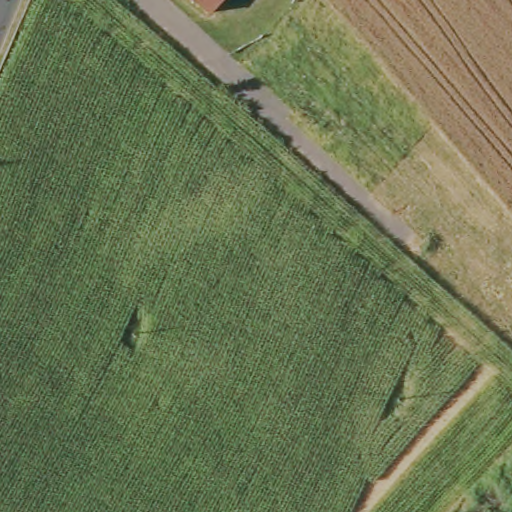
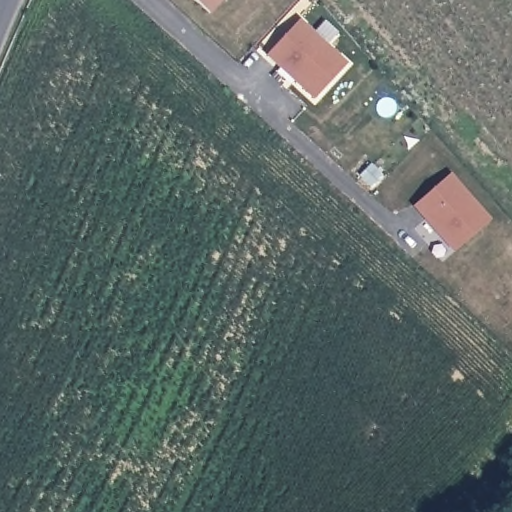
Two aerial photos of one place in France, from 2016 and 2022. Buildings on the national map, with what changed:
unchanged [(211,12),(198,0),(223,0),(211,12)]
new [(267,56),(301,20),(347,63),(314,99),(267,56)]
new [(427,234),(412,206),(451,174),(490,218),(453,252),(427,234)]

